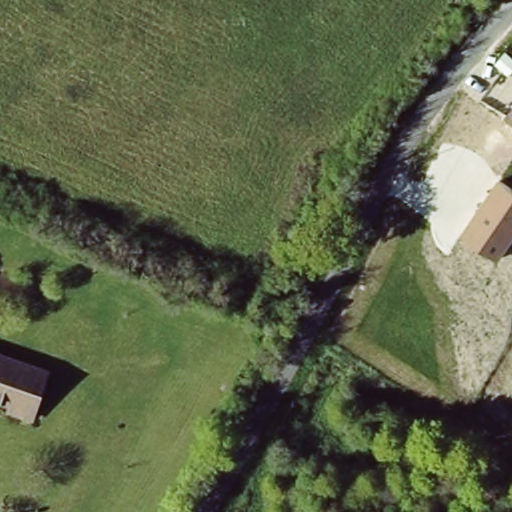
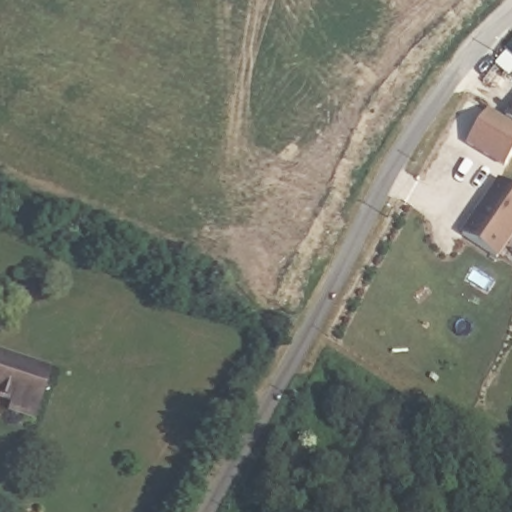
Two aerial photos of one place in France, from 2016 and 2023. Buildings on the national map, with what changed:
unchanged [(512,103),(512,125),(501,117),(512,103)]
new [(489,107),(501,117),(512,125),(512,157),(505,167),(467,145),(489,107)]
unchanged [(497,178),(512,189),(512,237),(497,257),(461,232),(497,178)]
unchanged [(51,372),(37,419),(0,407),(0,356),(51,372)]

